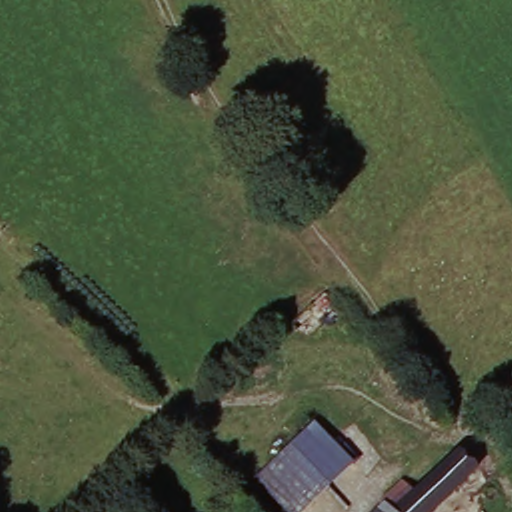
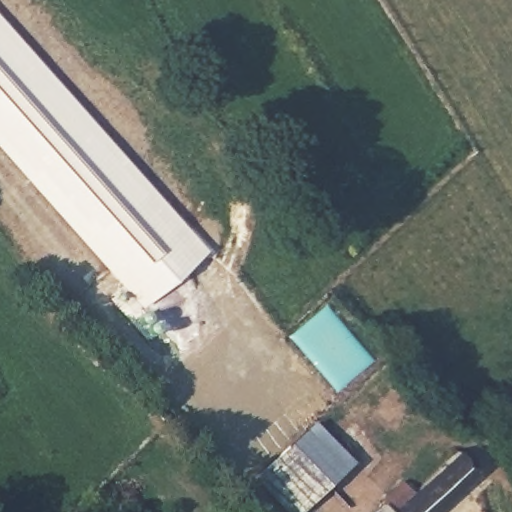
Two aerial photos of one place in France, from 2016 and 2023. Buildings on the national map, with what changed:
new [(142,302),(0,143),(0,27),(200,251),(142,302)]
unchanged [(337,287),(352,304),(338,317),(309,344),(293,328),(323,301),(337,287)]
unchanged [(288,450),(313,426),(352,469),(328,493),(288,450)]
unchanged [(328,493),(302,512),(279,512),(251,481),(288,450),(328,493)]
unchanged [(473,482),(440,512),(373,512),(380,506),(375,501),(397,479),(412,496),(452,457),(473,482)]

